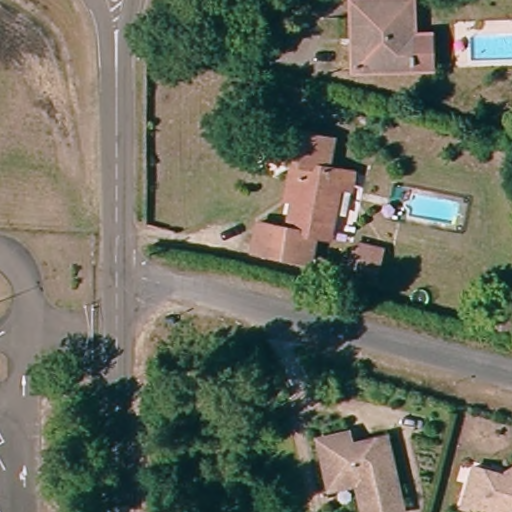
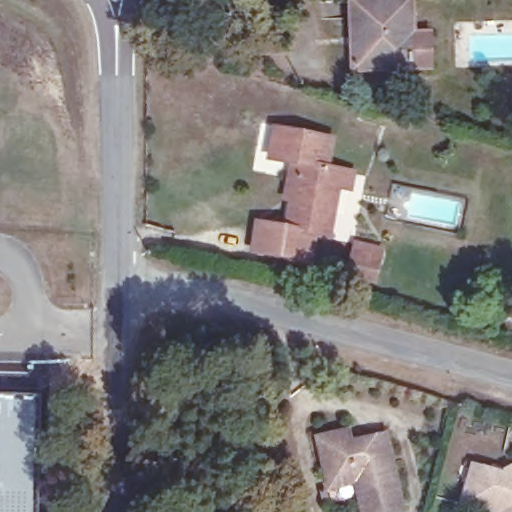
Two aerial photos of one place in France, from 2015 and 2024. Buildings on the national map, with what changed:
unchanged [(435,60),(414,64),(369,72),(369,78),(353,82),(349,56),(354,53),(347,11),(397,1),(403,33),(431,28),(435,60)]
unchanged [(303,261),(248,250),(254,219),(280,223),(293,158),(265,153),(270,126),(323,137),(319,160),(344,165),(342,181),(332,180),(323,232),(308,230),(303,261)]
unchanged [(381,255),(374,282),(350,275),(355,249),(381,255)]
new [(35,492),(36,512),(0,512),(0,394),(40,395),(35,492)]
unchanged [(371,512),(364,486),(337,493),(323,445),(353,436),(356,448),(368,445),(391,439),(411,512),(371,512)]
unchanged [(470,462),(503,473),(512,467),(512,512),(489,512),(458,502),(470,462)]

